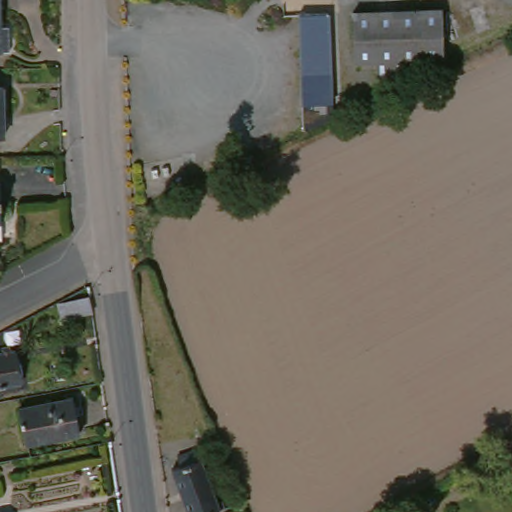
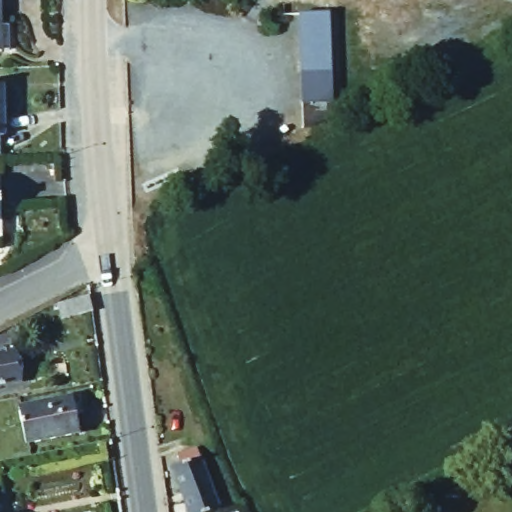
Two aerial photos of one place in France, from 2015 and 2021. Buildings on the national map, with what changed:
unchanged [(9,27),(10,52),(0,52),(0,0),(2,0),(4,27),(9,27)]
demolished [(435,59),(370,62),(369,12),(433,10),(435,59)]
unchanged [(324,20),(328,110),(299,110),(295,20),(324,20)]
unchanged [(2,82),(2,132),(0,132),(0,83),(2,82)]
unchanged [(88,287),(91,302),(60,310),(58,296),(88,287)]
unchanged [(7,353),(6,348),(12,347),(13,352),(19,351),(24,383),(0,387),(0,355),(7,353)]
unchanged [(72,393),(78,428),(24,440),(18,405),(72,393)]
unchanged [(173,470),(181,467),(177,457),(197,450),(217,503),(221,502),(223,507),(219,509),(219,511),(217,512),(188,512),(173,470)]
unchanged [(1,508),(1,512),(0,512),(0,509),(1,508)]

